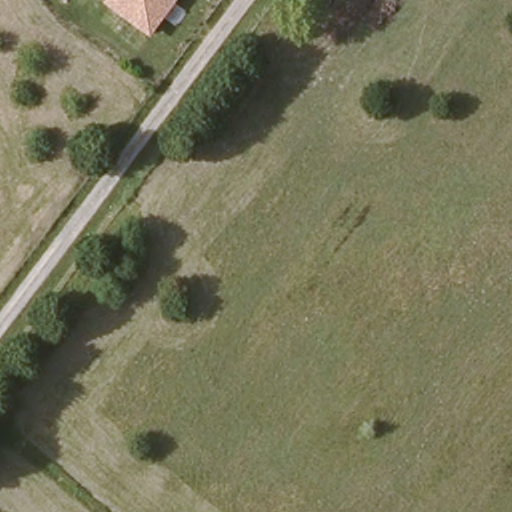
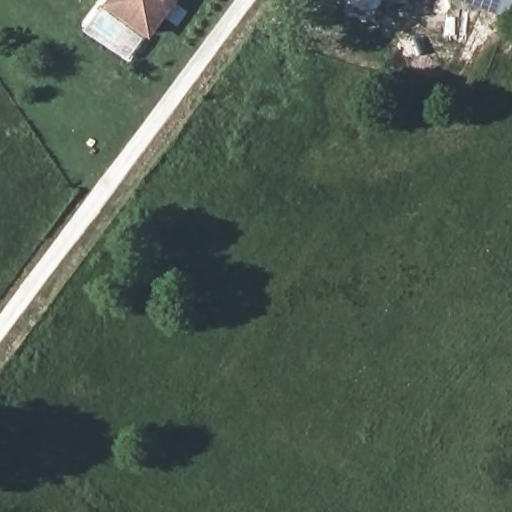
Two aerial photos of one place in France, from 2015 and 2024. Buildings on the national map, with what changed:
demolished [(101,1),(100,0),(102,0),(101,1)]
unchanged [(149,41),(101,1),(102,0),(182,0),(149,41)]
new [(461,0),(512,0),(512,3),(506,17),(461,0)]

